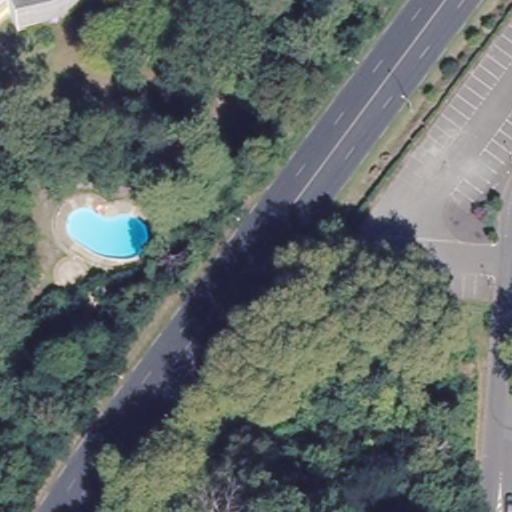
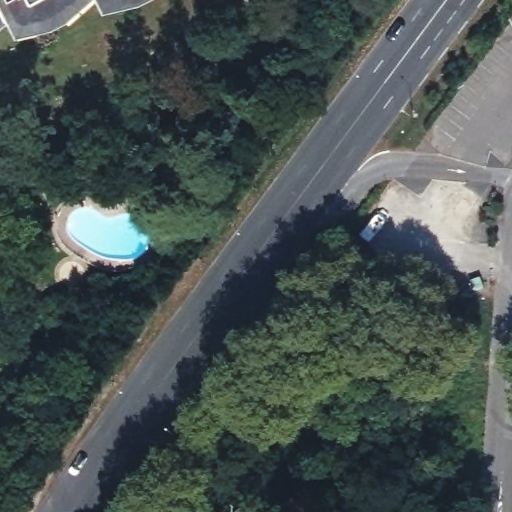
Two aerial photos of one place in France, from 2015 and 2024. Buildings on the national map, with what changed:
unchanged [(64,3),(56,7),(41,12),(28,15),(16,17),(9,2),(0,10),(0,0),(68,0),(64,3)]

